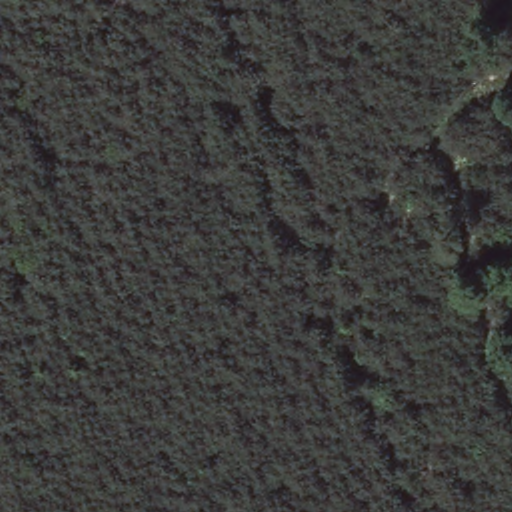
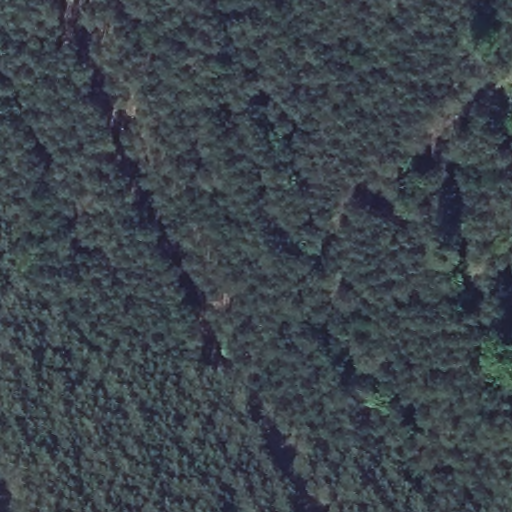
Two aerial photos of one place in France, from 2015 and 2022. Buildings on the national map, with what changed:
[]

